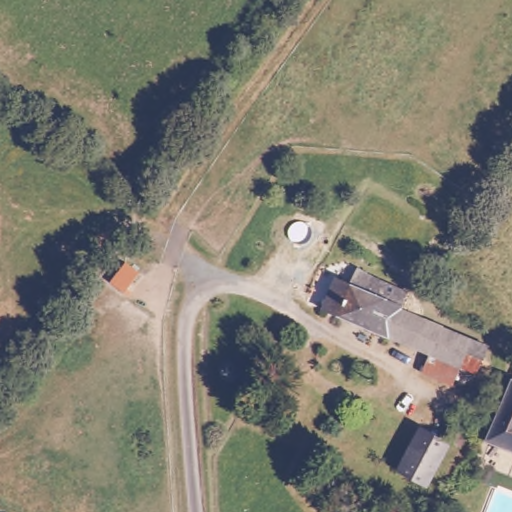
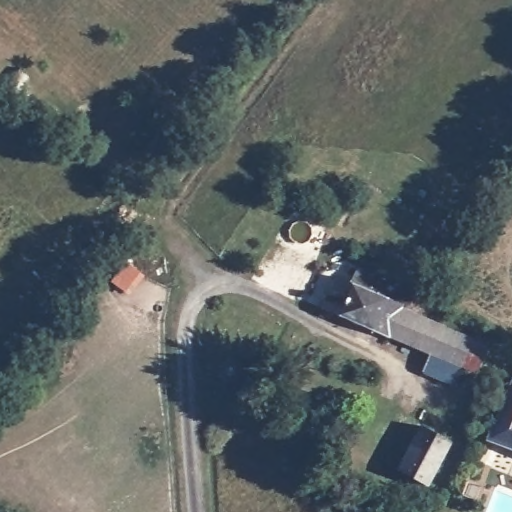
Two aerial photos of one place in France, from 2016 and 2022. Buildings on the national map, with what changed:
unchanged [(464,368),(456,386),(425,372),(432,355),(326,310),(337,281),(347,270),(360,273),(361,270),(406,291),(410,286),(423,295),(416,312),(492,346),(479,373),(464,368)]
unchanged [(501,407),(512,381),(512,450),(488,440),(501,407)]
unchanged [(403,469),(426,428),(452,442),(428,485),(403,469)]

